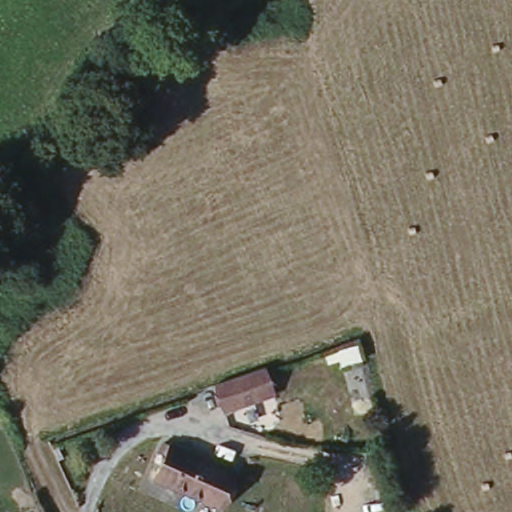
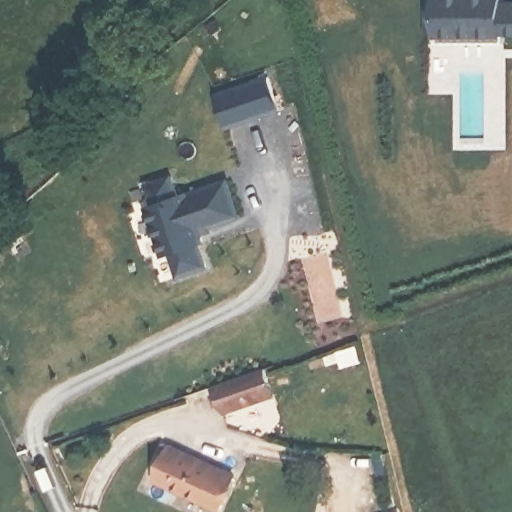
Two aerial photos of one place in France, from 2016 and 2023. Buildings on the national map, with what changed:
new [(434,0),(512,0),(512,40),(434,41),(434,0)]
new [(214,92),(268,75),(279,111),(227,129),(214,92)]
new [(167,265),(159,267),(141,212),(150,208),(143,185),(174,171),(182,193),(226,178),(239,218),(196,233),(207,269),(172,280),(167,265)]
unchanged [(266,371),(272,397),(260,400),(219,412),(213,388),(253,374),(266,371)]
unchanged [(237,469),(221,508),(159,480),(169,456),(158,451),(165,439),(237,469)]

